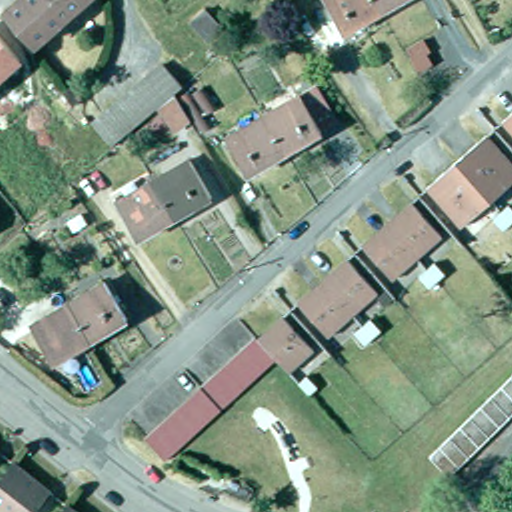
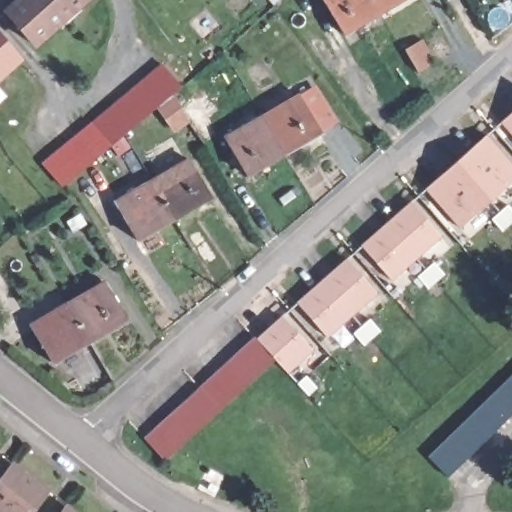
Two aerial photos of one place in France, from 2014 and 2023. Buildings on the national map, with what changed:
unchanged [(81,0),(33,43),(3,10),(15,0),(81,0)]
unchanged [(342,32),(323,0),(372,0),(378,11),(342,32)]
unchanged [(372,0),(397,0),(378,11),(372,0)]
unchanged [(0,73),(0,39),(17,59),(0,73)]
unchanged [(90,119),(160,57),(181,80),(174,87),(126,130),(112,142),(90,119)]
unchanged [(297,92),(317,130),(282,151),(260,115),(297,92)]
unchanged [(500,120),(512,109),(512,132),(500,120)]
unchanged [(282,151),(245,174),(224,137),(260,115),(282,151)]
new [(112,142),(64,185),(43,162),(90,119),(112,142)]
unchanged [(421,186),(481,132),(512,167),(512,175),(456,225),(453,221),(421,186)]
unchanged [(188,157),(210,195),(174,216),(151,180),(188,157)]
unchanged [(0,187),(0,173),(7,181),(0,187)]
unchanged [(174,216),(136,239),(114,202),(151,180),(174,216)]
unchanged [(406,199),(437,234),(388,278),(381,270),(358,244),(402,203),(406,199)]
unchanged [(487,216),(495,209),(504,201),(512,210),(512,214),(505,220),(497,227),(487,216)]
unchanged [(325,335),(294,301),(298,297),(342,256),(366,283),(374,292),(325,335)]
unchanged [(415,272),(423,266),(430,260),(440,271),(433,277),(426,283),(415,272)]
unchanged [(105,278),(127,316),(91,337),(68,300),(105,278)]
unchanged [(91,337),(55,359),(32,320),(68,300),(91,337)]
unchanged [(280,315),(310,349),(285,371),(272,358),(254,339),(280,315)]
unchanged [(351,332),(360,325),(367,318),(377,328),(368,335),(360,342),(351,332)]
unchanged [(272,358),(163,460),(142,437),(251,336),(254,339),(272,358)]
unchanged [(305,374),(314,385),(305,393),(295,382),(305,374)]
unchanged [(512,377),(512,415),(448,473),(430,453),(512,377)]
unchanged [(50,488),(31,512),(6,512),(0,507),(0,475),(11,460),(50,488)]
unchanged [(65,501),(80,512),(58,512),(65,501)]

